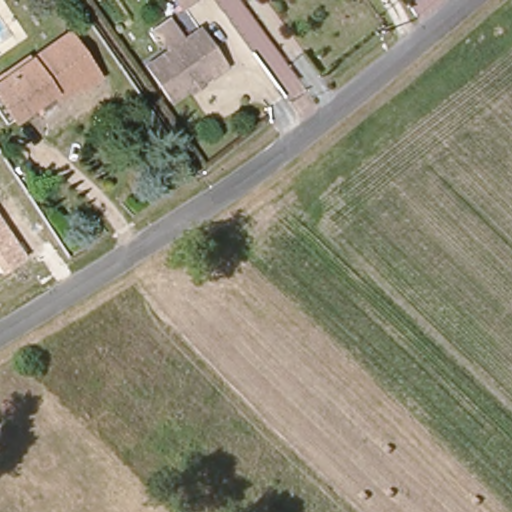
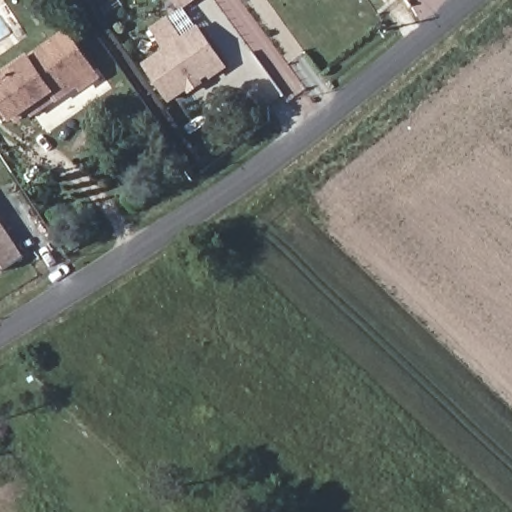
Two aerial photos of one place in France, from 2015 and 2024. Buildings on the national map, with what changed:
unchanged [(177,0),(191,0),(182,6),(177,0)]
unchanged [(224,66),(210,75),(208,71),(168,97),(144,60),(199,25),(224,66)]
unchanged [(25,109),(8,119),(0,107),(0,79),(21,65),(65,35),(91,71),(96,79),(79,90),(73,84),(51,100),(30,115),(25,109)]
unchanged [(0,271),(0,223),(22,256),(0,271)]

